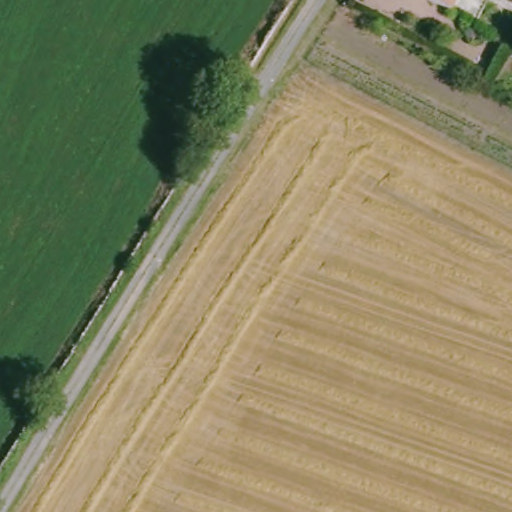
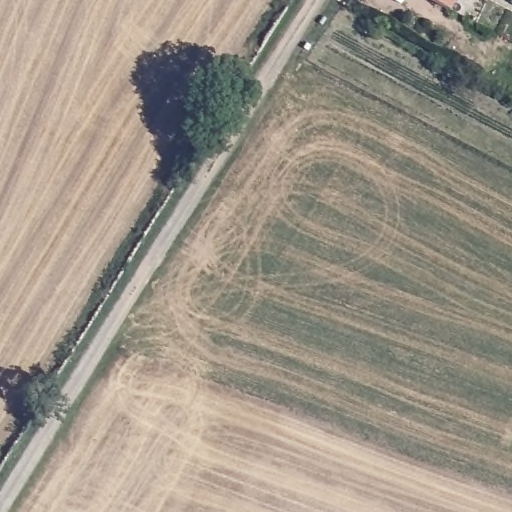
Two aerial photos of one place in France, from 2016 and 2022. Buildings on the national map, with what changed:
unchanged [(446,12),(424,0),(453,0),(446,12)]

